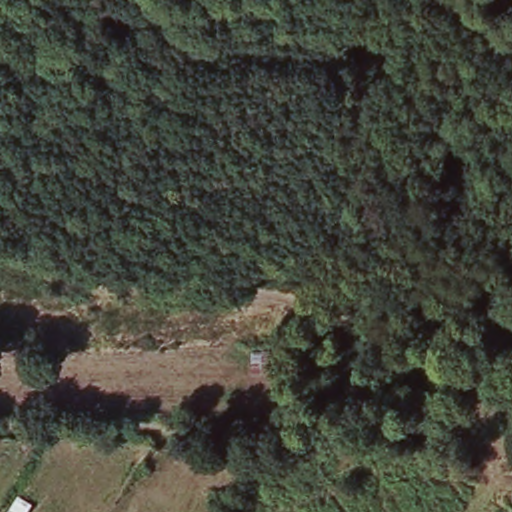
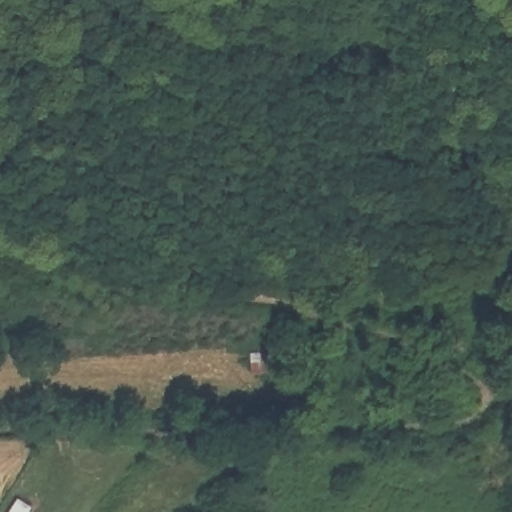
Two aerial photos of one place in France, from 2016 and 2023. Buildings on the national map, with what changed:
[]

